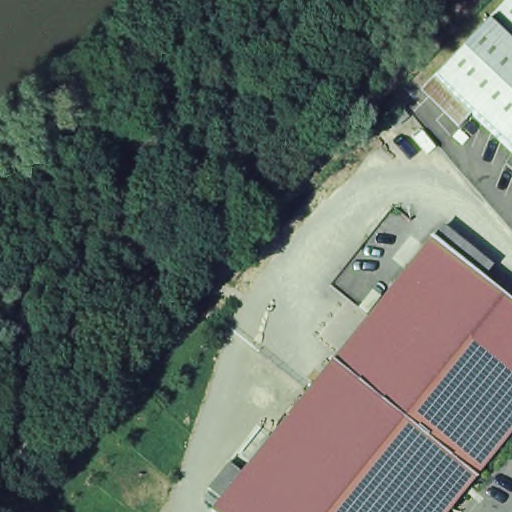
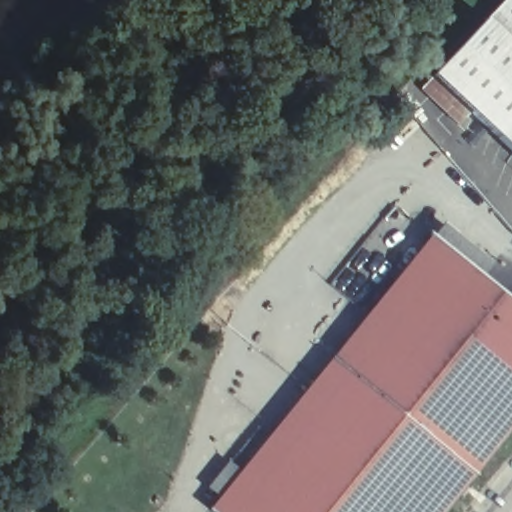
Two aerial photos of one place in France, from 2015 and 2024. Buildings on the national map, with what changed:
unchanged [(507,0),(512,0),(512,44),(488,21),(507,0)]
unchanged [(500,139),(473,115),(461,128),(423,93),(435,79),(488,21),(512,44),(512,151),(500,139)]
unchanged [(401,106),(408,115),(394,127),(386,119),(401,106)]
unchanged [(434,235),(448,250),(458,239),(476,252),(492,266),(482,279),(508,299),(512,303),(512,429),(446,512),(211,512),(431,239),(434,235)]

